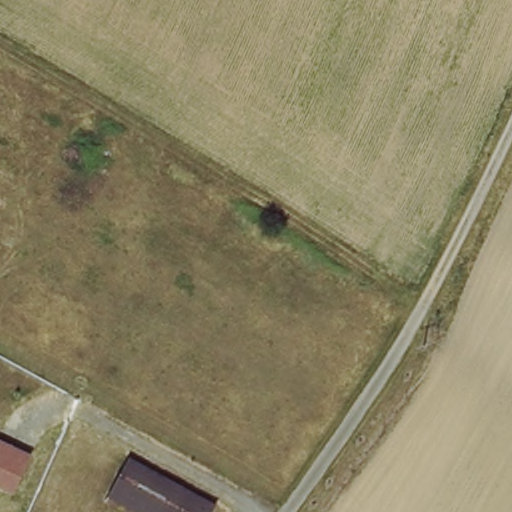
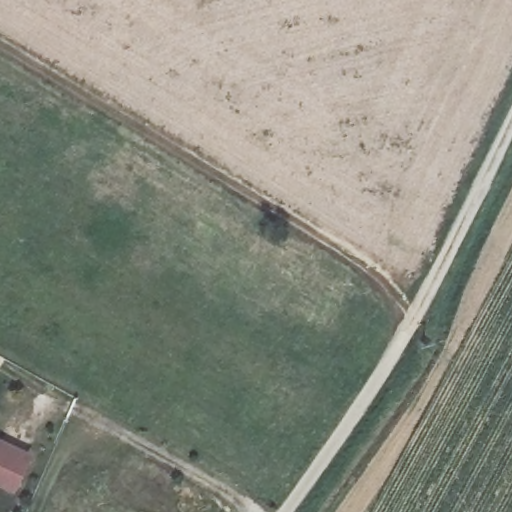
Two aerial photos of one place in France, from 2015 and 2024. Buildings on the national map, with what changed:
unchanged [(18,492),(0,484),(0,439),(36,454),(18,492)]
demolished [(128,461),(216,505),(212,512),(132,512),(108,498),(128,461)]

